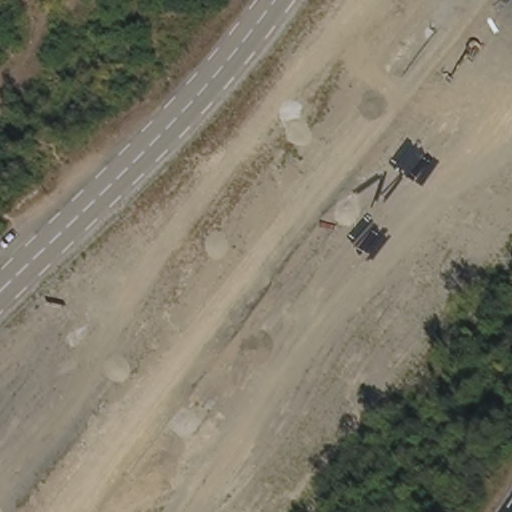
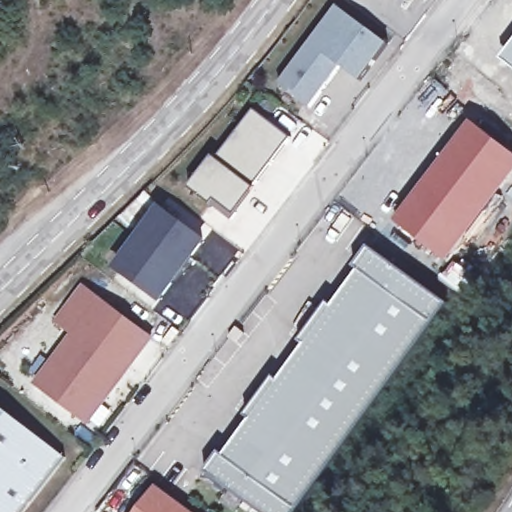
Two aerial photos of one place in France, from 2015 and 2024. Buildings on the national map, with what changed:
new [(399,0),(409,0),(406,5),(399,0)]
new [(337,6),(388,44),(360,82),(340,67),(311,109),(279,85),(337,6)]
new [(512,68),(500,59),(512,43),(512,68)]
new [(256,190),(237,215),(218,200),(214,205),(192,189),(215,159),(220,161),(256,113),(292,140),(256,190)]
new [(475,129),(512,157),(512,178),(450,260),(403,224),(475,129)]
new [(115,269),(162,207),(208,242),(162,305),(115,269)]
new [(220,452),(225,455),(250,421),(246,418),(275,377),(280,380),(305,346),(300,343),(329,304),(334,308),(360,271),(355,268),(370,248),(447,305),(298,512),(258,512),(206,473),(220,452)]
new [(76,337),(64,320),(90,286),(152,342),(90,425),(39,386),(76,337)]
new [(239,325),(246,331),(237,343),(230,336),(239,325)]
new [(65,458),(22,512),(0,512),(0,406),(65,458)]
new [(158,487),(192,512),(139,512),(158,487)]

